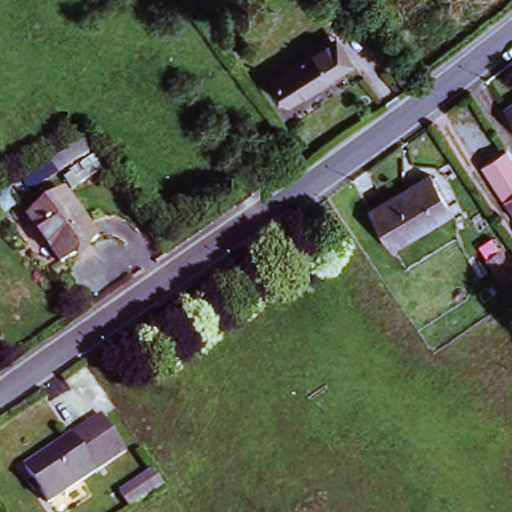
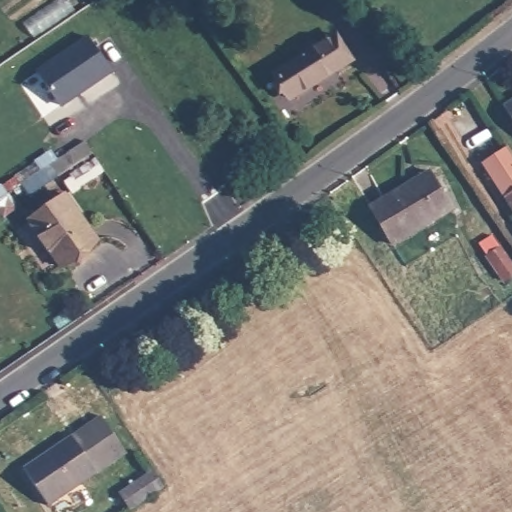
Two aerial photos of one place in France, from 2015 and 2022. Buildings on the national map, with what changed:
unchanged [(275,75),(325,44),(336,36),(352,61),(340,68),(290,100),(275,75)]
new [(89,37),(114,73),(61,110),(37,72),(89,37)]
unchanged [(512,96),(512,113),(504,102),(512,96)]
unchanged [(82,146),(89,156),(54,179),(46,167),(81,143),(82,146)]
unchanged [(507,150),(512,159),(512,211),(483,166),(507,150)]
unchanged [(60,184),(68,179),(71,183),(96,166),(101,173),(76,190),(68,195),(60,184)]
unchanged [(394,245),(372,208),(429,174),(451,211),(394,245)]
unchanged [(25,222),(62,196),(94,242),(58,268),(25,222)]
unchanged [(506,286),(479,244),(492,235),(512,261),(512,279),(506,286)]
unchanged [(25,466),(103,414),(127,450),(49,502),(25,466)]
unchanged [(120,495),(153,472),(164,488),(131,511),(120,495)]

